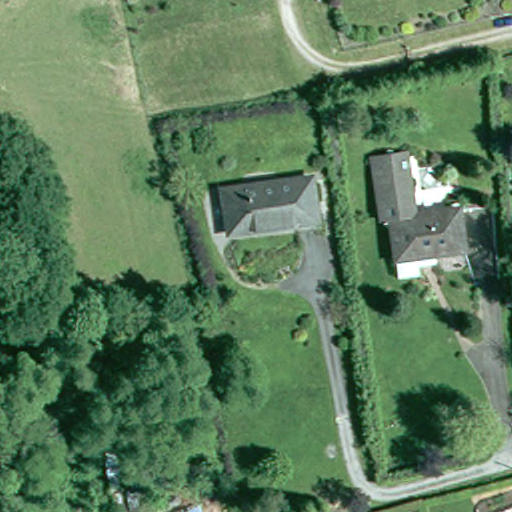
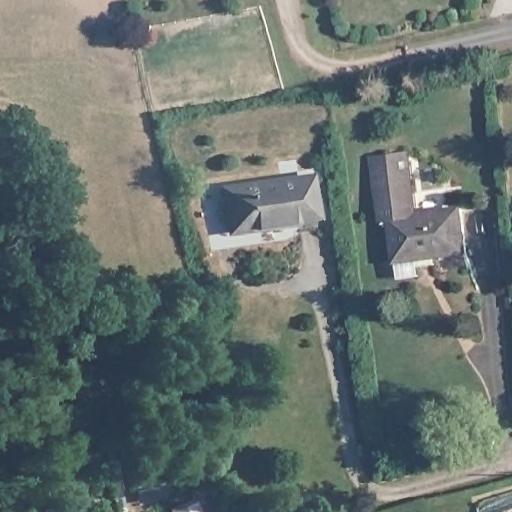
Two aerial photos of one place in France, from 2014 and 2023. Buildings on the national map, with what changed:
unchanged [(398,219),(392,220),(385,156),(417,152),(423,216),(398,219)]
unchanged [(237,235),(232,192),(317,183),(323,226),(290,229),(237,235)]
unchanged [(398,219),(423,216),(468,211),(473,254),(403,258),(398,219)]

